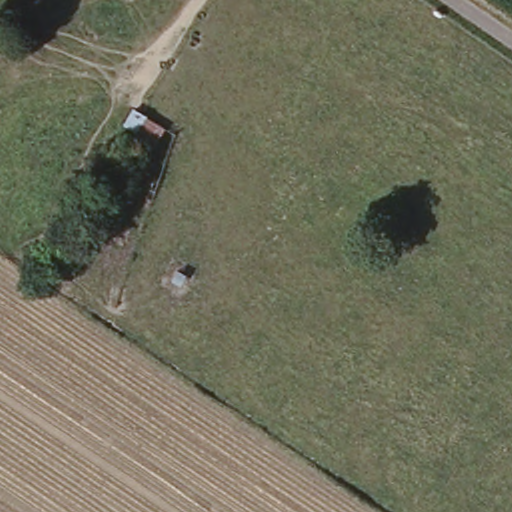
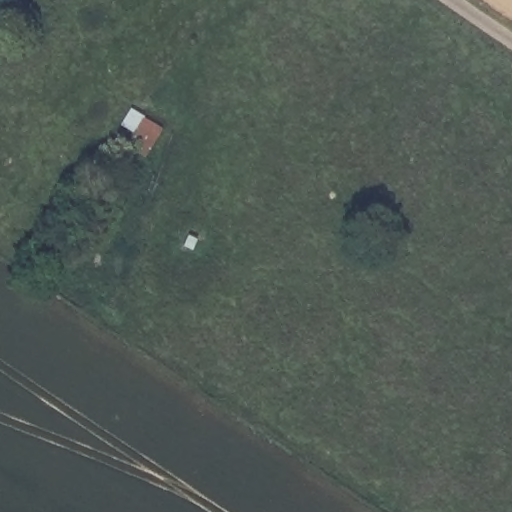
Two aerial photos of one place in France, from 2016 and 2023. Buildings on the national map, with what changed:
unchanged [(164,126),(145,163),(123,152),(133,133),(119,126),(128,108),(164,126)]

